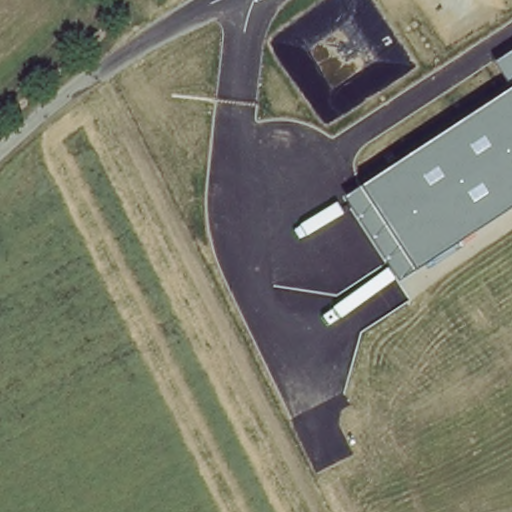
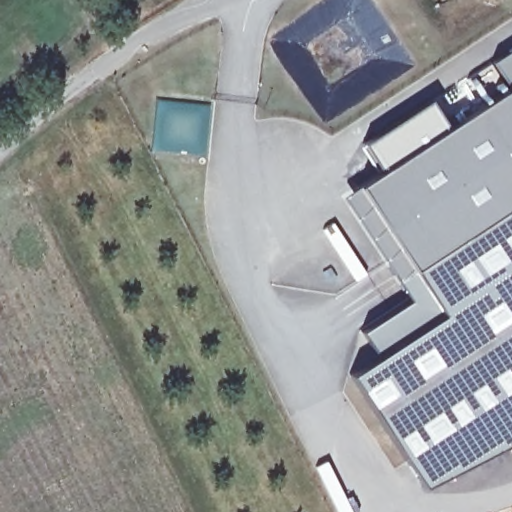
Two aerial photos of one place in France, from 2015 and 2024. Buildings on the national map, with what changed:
unchanged [(493,64),(512,50),(512,207),(397,282),(344,195),(508,87),(493,64)]
new [(423,485),(350,375),(380,356),(363,332),(411,301),(397,282),(512,207),(512,439),(423,485)]

